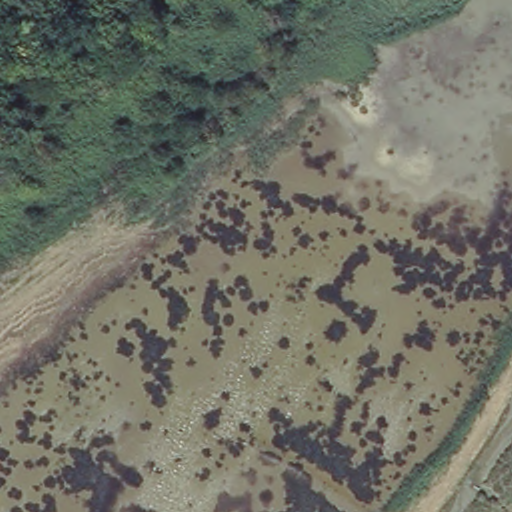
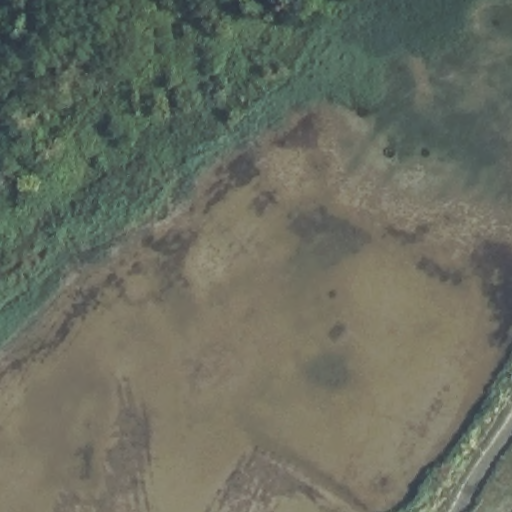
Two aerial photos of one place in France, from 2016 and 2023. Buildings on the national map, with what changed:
[]

